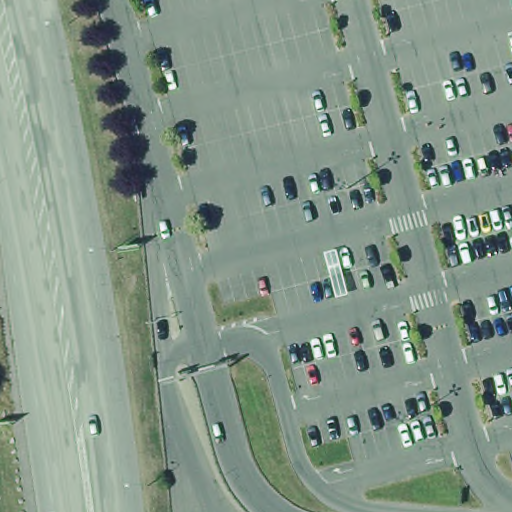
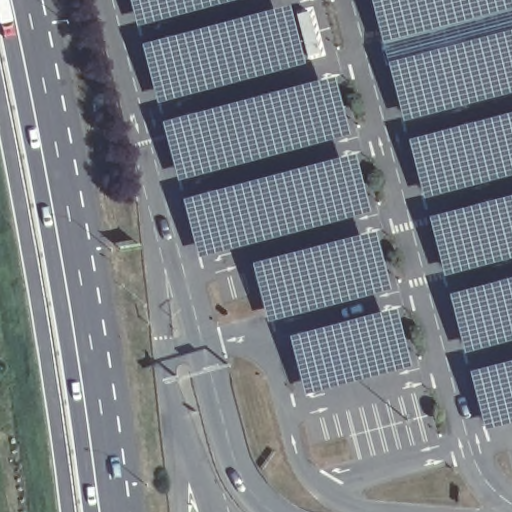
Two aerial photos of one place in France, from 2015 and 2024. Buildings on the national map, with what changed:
new [(142,31),(132,0),(239,0),(142,31)]
new [(309,12),(322,55),(162,107),(145,53),(290,7),(294,17),(309,12)]
new [(182,185),(164,129),(333,75),(350,132),(182,185)]
new [(512,176),(425,199),(410,142),(512,115),(512,176)]
new [(203,263),(185,207),(353,152),(372,209),(203,263)]
new [(512,259),(446,277),(430,219),(512,198),(512,259)]
new [(272,326),(254,269),(374,231),(392,287),(272,326)]
new [(451,296),(512,280),(512,342),(467,354),(451,296)]
new [(309,398),(290,342),(395,308),(413,365),(309,398)]
new [(472,374),(512,363),(512,424),(487,431),(472,374)]

